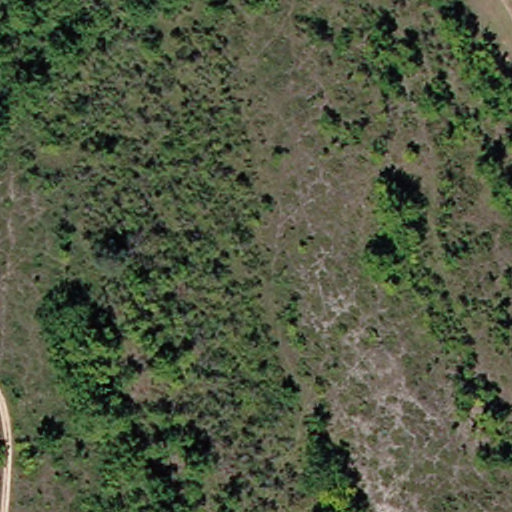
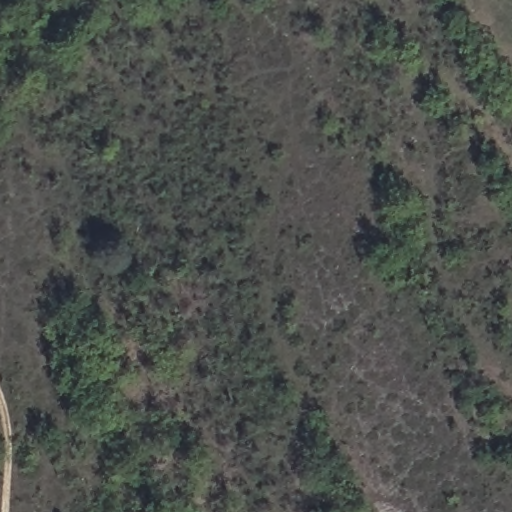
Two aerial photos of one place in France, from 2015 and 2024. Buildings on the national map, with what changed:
[]

